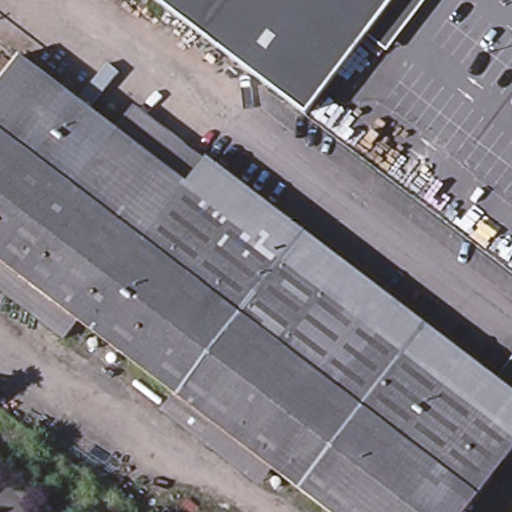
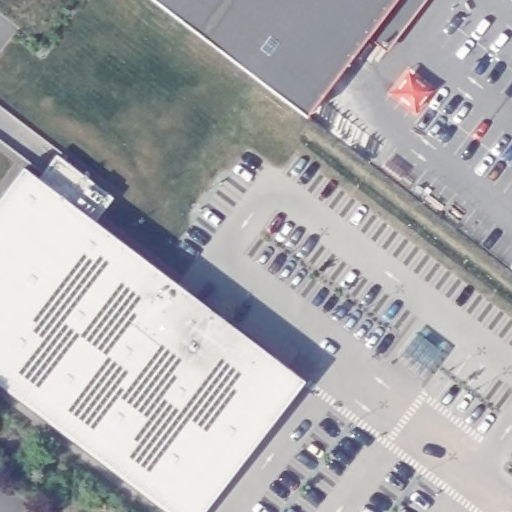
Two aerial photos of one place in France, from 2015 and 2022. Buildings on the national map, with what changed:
unchanged [(305,113),(157,0),(393,0),(367,34),(305,113)]
unchanged [(367,34),(393,0),(424,0),(387,49),(367,34)]
demolished [(20,57),(115,128),(127,114),(197,170),(180,193),(108,139),(66,195),(0,145),(0,83),(20,57)]
demolished [(66,195),(137,249),(180,193),(197,170),(512,411),(512,453),(467,512),(310,512),(0,279),(0,145),(66,195)]
new [(37,176),(56,153),(113,195),(95,219),(305,378),(202,512),(169,512),(0,383),(0,195),(22,165),(37,176)]

